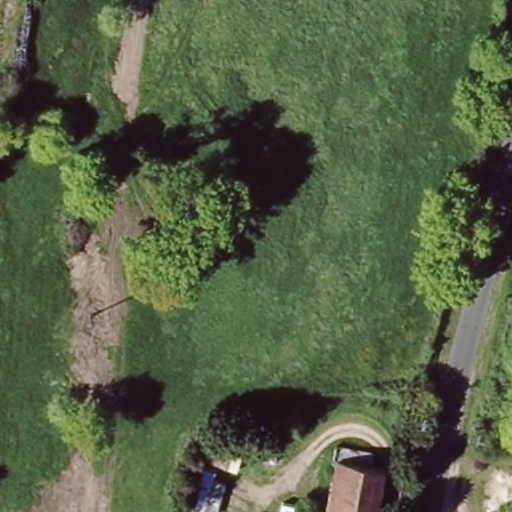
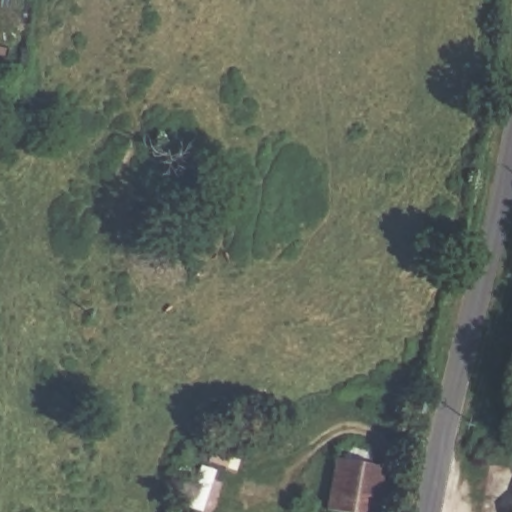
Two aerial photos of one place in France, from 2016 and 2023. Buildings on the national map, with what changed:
unchanged [(374,512),(324,512),(333,462),(381,471),(374,512)]
unchanged [(215,469),(215,476),(227,479),(216,512),(211,512),(187,507),(200,463),(215,469)]

